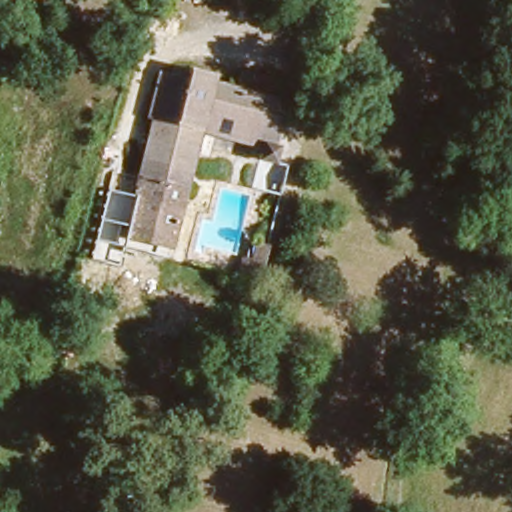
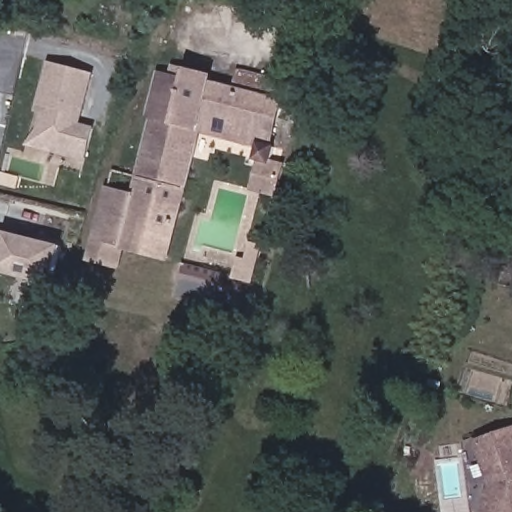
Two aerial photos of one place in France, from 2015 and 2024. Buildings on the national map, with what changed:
new [(47,63),(89,73),(77,123),(92,126),(86,158),(69,154),(28,145),(38,101),(47,63)]
unchanged [(126,238),(128,225),(131,205),(113,202),(115,188),(135,191),(137,181),(119,178),(122,156),(141,160),(148,119),(144,118),(152,71),(167,75),(169,67),(204,73),(203,82),(203,84),(276,104),(269,139),(274,140),(271,156),(256,153),(259,139),(194,125),(173,232),(171,245),(126,238)]
unchanged [(231,88),(234,68),(272,74),(268,95),(231,88)]
unchanged [(250,263),(253,243),(259,243),(264,226),(278,229),(271,265),(253,263),(250,263)]
new [(59,244),(50,283),(0,271),(0,230),(59,244)]
new [(489,485),(474,441),(512,428),(512,512),(484,512),(489,485)]

